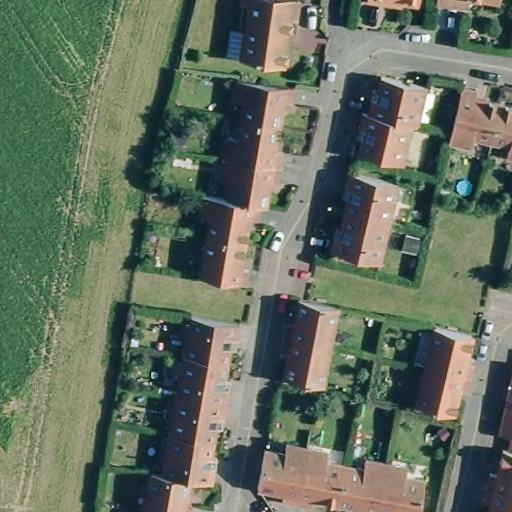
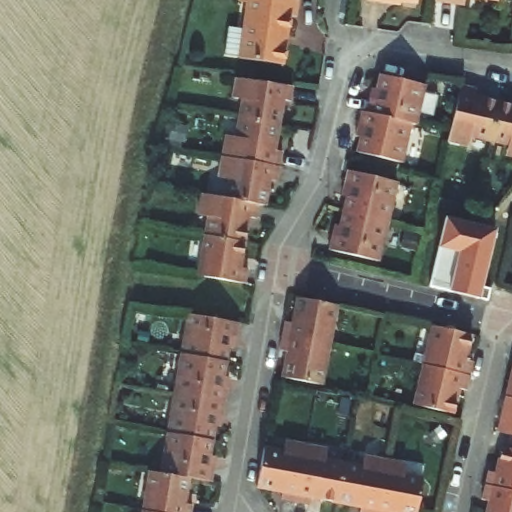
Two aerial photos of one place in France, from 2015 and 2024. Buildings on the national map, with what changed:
unchanged [(244,56),(229,54),(234,26),(248,29),(252,2),(243,1),(244,0),(303,0),(300,17),(295,17),(288,65),(244,58),(244,56)]
unchanged [(381,1),(372,0),(382,0),(381,1)]
unchanged [(396,0),(417,0),(417,3),(396,0)]
unchanged [(464,5),(434,0),(435,0),(464,0),(464,5)]
unchanged [(358,126),(361,111),(366,112),(370,97),(373,88),(378,89),(381,75),(426,85),(416,124),(411,123),(401,163),(356,152),(361,137),(356,135),(358,126)]
unchanged [(247,269),(244,284),(238,283),(198,276),(204,236),(208,217),(198,215),(201,195),(225,199),(228,180),(218,179),(222,156),(226,137),(236,139),(239,118),(242,100),(232,99),(235,78),(258,81),(277,84),(293,86),(291,101),(283,100),(281,110),(279,125),(276,139),(274,150),(282,151),(279,166),(276,181),(269,180),(267,191),(264,205),(258,204),(256,217),(248,216),(246,227),(243,242),(241,257),(239,267),(247,269)]
unchanged [(509,145),(489,141),(469,136),(467,146),(448,141),(449,132),(461,86),(476,90),(474,97),(484,100),(499,102),(512,106),(512,157),(507,155),(509,145)]
unchanged [(339,226),(343,211),(346,196),(341,195),(344,186),(348,170),(397,182),(388,222),(378,262),(329,250),(333,235),(334,225),(339,226)]
new [(479,298),(449,291),(428,287),(437,248),(445,216),(495,229),(479,298)]
unchanged [(279,350),(282,336),(284,321),(292,323),(294,311),(297,298),(301,299),(336,305),(332,326),(329,345),(325,364),(321,385),(281,377),(284,362),(286,351),(279,350)]
unchanged [(161,473),(168,433),(174,394),(181,353),(188,315),(189,315),(229,321),(238,323),(236,338),(233,348),(228,347),(226,360),(223,377),(228,378),(227,387),(224,402),(222,417),(221,427),(216,426),(213,441),(211,456),(215,456),(213,466),(211,482),(189,478),(186,493),(184,504),(192,505),(191,512),(143,512),(151,471),(161,473)]
unchanged [(414,405),(418,383),(423,365),(427,346),(432,325),(437,326),(471,335),(468,348),(465,360),(473,361),(469,375),(466,390),(458,388),(456,399),(453,414),(414,405)]
unchanged [(484,485),(488,471),(495,473),(498,462),(501,447),(507,448),(511,435),(497,432),(505,397),(512,367),(512,512),(487,512),(489,501),(482,500),(484,485)]
unchanged [(349,505),(335,502),(321,500),(311,497),(309,505),(294,502),(280,500),(281,492),(271,490),(256,487),(258,479),(261,460),(264,448),(283,451),(285,442),(326,450),(324,460),(362,466),(364,456),(383,460),(404,463),(403,473),(422,477),(415,512),(389,512),(359,512),(360,506),(349,505)]

